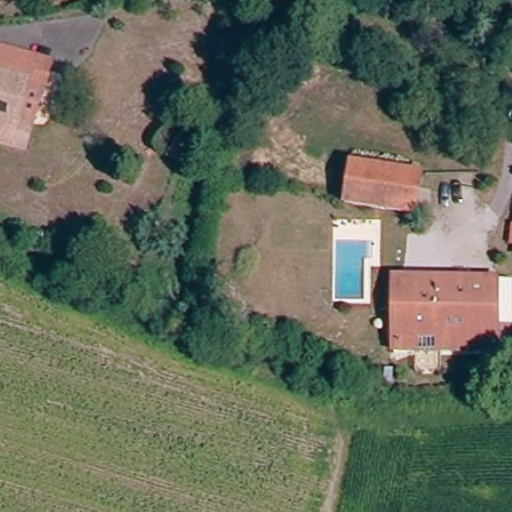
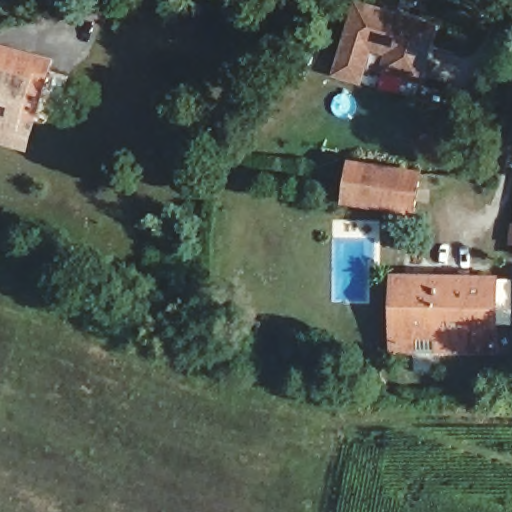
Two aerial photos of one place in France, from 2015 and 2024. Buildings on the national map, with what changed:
unchanged [(309,0),(306,24),(261,18),(264,0),(309,0)]
new [(423,85),(379,73),(384,55),(371,52),(363,86),(333,77),(354,1),(440,25),(423,85)]
unchanged [(51,64),(29,152),(0,146),(0,64),(4,52),(51,64)]
unchanged [(402,175),(418,177),(416,189),(410,220),(384,214),(343,205),(345,194),(348,178),(398,184),(402,175)]
unchanged [(418,364),(418,348),(395,348),(397,281),(500,283),(498,350),(441,349),(440,364),(418,364)]

